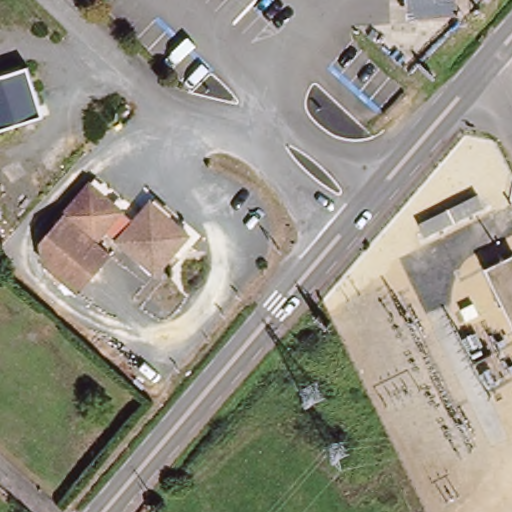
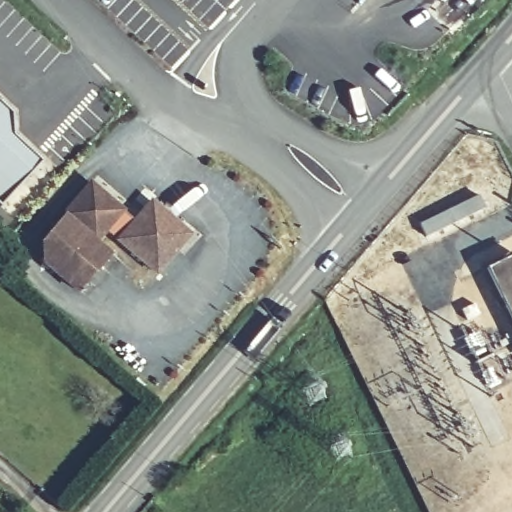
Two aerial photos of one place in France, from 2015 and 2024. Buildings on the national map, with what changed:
demolished [(453,14),(403,17),(402,0),(452,0),(453,14)]
demolished [(23,67),(39,118),(0,130),(0,75),(23,67)]
new [(10,113),(12,137),(41,162),(1,207),(0,206),(0,103),(10,113)]
unchanged [(153,277),(102,231),(91,244),(106,257),(74,293),(38,261),(38,240),(89,184),(133,225),(149,205),(187,240),(153,277)]
unchanged [(512,261),(512,328),(486,273),(512,261)]

